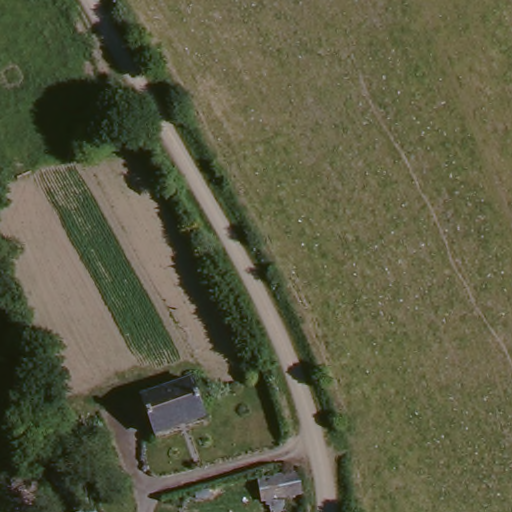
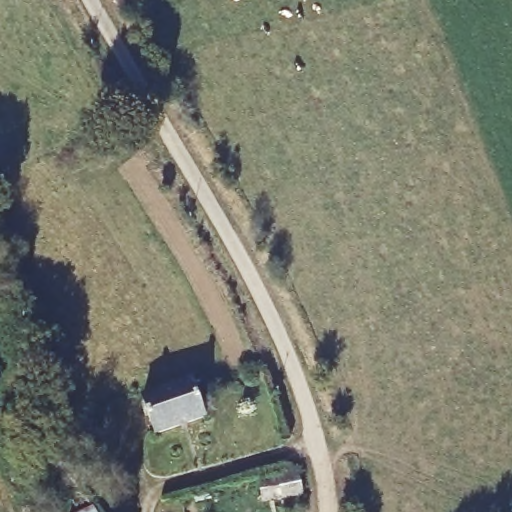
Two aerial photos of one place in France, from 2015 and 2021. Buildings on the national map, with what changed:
unchanged [(146,399),(198,380),(211,414),(159,433),(146,399)]
unchanged [(306,466),(311,504),(285,512),(281,512),(274,499),(266,501),(263,474),(306,466)]
unchanged [(94,507),(97,512),(82,512),(94,507)]

